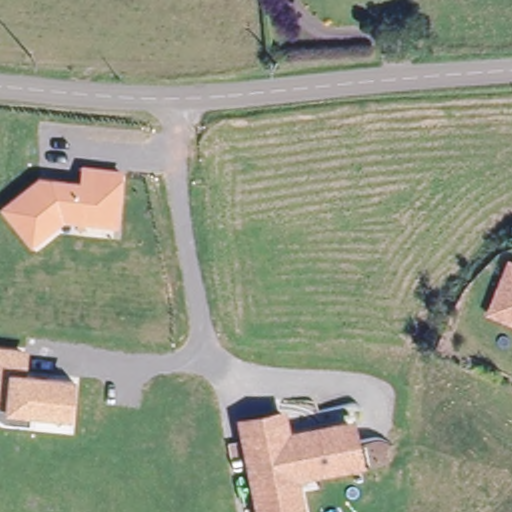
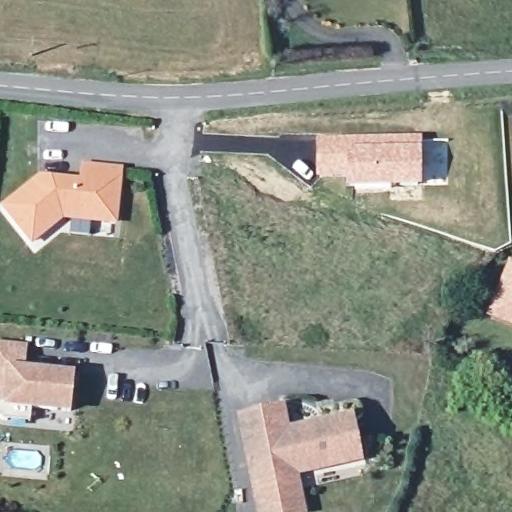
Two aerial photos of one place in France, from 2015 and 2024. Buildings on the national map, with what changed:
new [(422,137),(422,187),(345,189),(344,177),(315,177),(314,138),(422,137)]
unchanged [(124,168),(118,227),(64,221),(32,246),(0,208),(38,176),(80,180),(81,164),(124,168)]
unchanged [(491,318),(510,265),(512,266),(512,325),(491,318)]
unchanged [(26,372),(73,377),(70,418),(30,415),(29,424),(2,421),(0,420),(0,345),(27,347),(26,372)]
unchanged [(362,464),(299,477),(305,512),(254,512),(235,417),(285,406),(290,428),(352,416),(362,464)]

